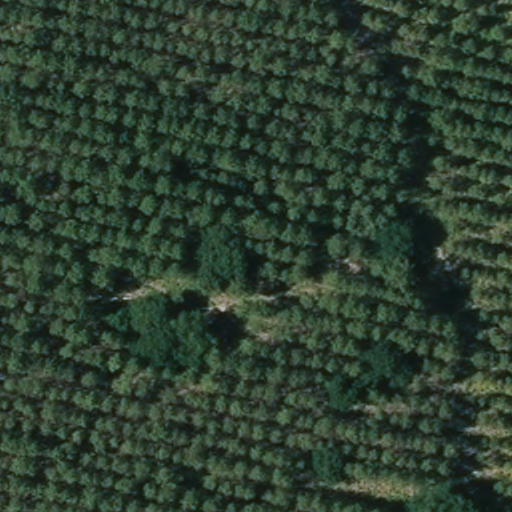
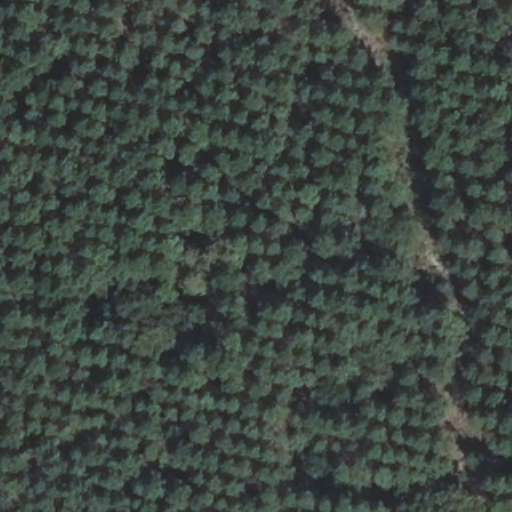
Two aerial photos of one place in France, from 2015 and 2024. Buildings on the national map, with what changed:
[]

